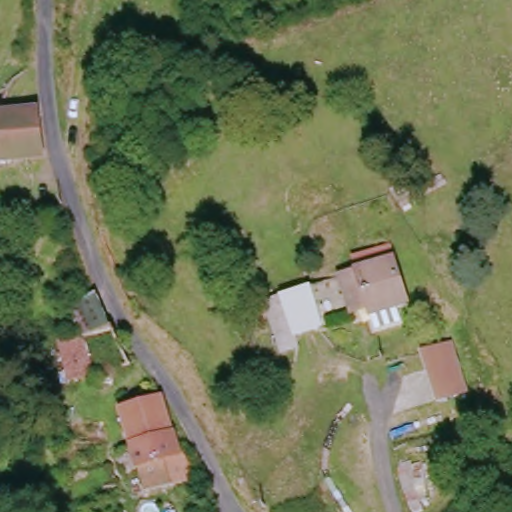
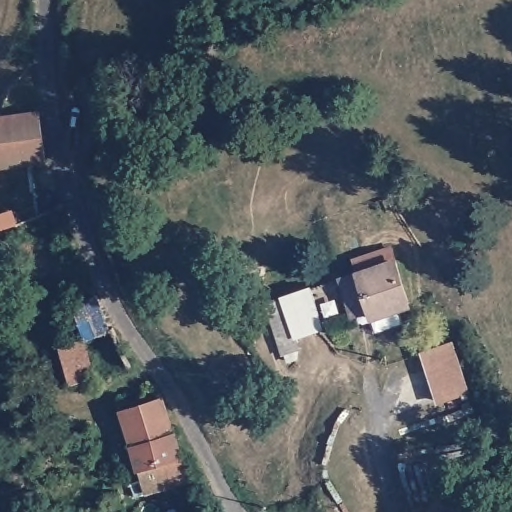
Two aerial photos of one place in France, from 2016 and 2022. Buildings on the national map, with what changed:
unchanged [(43,149),(45,156),(0,163),(0,117),(35,113),(43,149)]
unchanged [(4,230),(0,231),(0,213),(4,230)]
unchanged [(397,305),(366,315),(362,303),(345,308),(335,277),(385,262),(397,305)]
unchanged [(266,305),(265,300),(275,296),(306,287),(318,333),(290,339),(294,347),(273,348),(260,305),(266,305)]
unchanged [(57,347),(82,336),(72,310),(98,299),(111,335),(86,344),(96,379),(70,389),(57,347)]
unchanged [(419,353),(453,342),(470,395),(438,409),(419,353)]
unchanged [(130,447),(120,413),(164,400),(174,434),(177,433),(185,459),(191,458),(198,485),(149,497),(141,473),(138,474),(130,447)]

